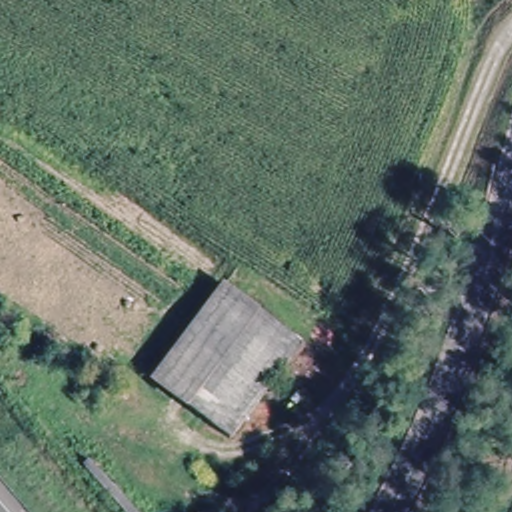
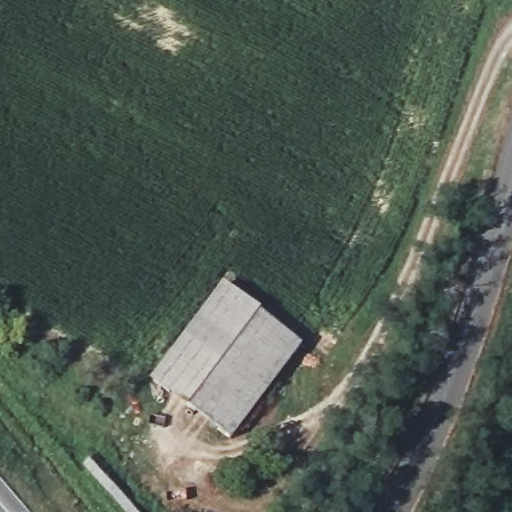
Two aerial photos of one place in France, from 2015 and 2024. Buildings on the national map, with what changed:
unchanged [(154,387),(222,292),(299,352),(230,445),(154,387)]

